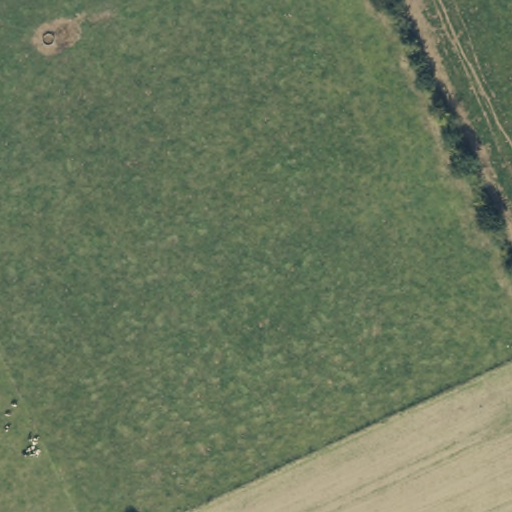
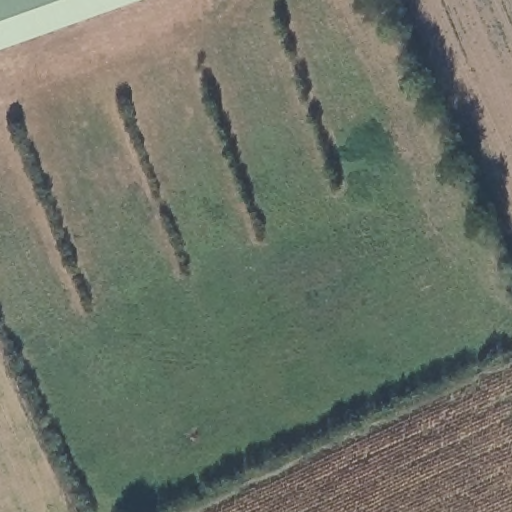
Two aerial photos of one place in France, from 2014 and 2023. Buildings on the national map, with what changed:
new [(141,0),(0,51),(0,0),(141,0)]

